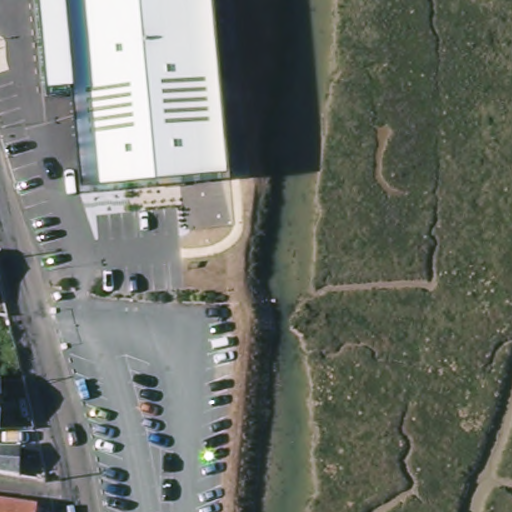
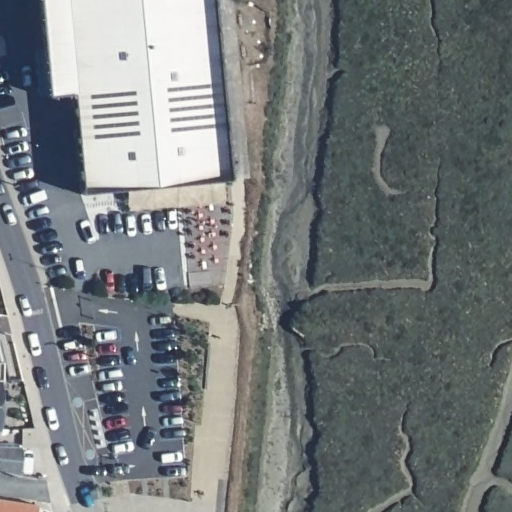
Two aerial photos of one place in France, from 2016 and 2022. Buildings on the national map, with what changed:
unchanged [(79,193),(70,96),(46,98),(39,0),(213,0),(228,183),(79,193)]
unchanged [(0,437),(0,384),(1,438),(0,437)]
unchanged [(20,477),(0,473),(0,447),(19,448),(20,477)]
unchanged [(45,512),(0,512),(0,504),(45,510),(45,512)]

